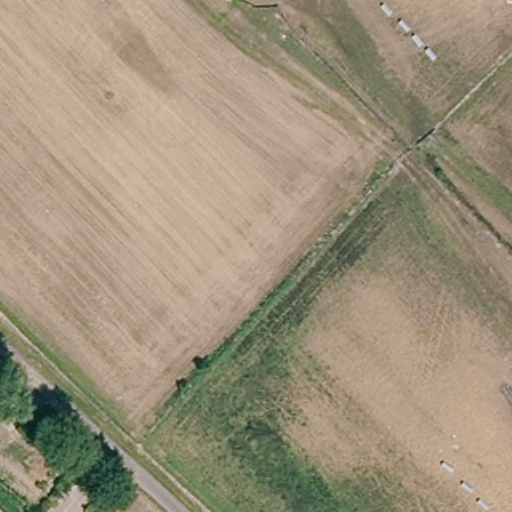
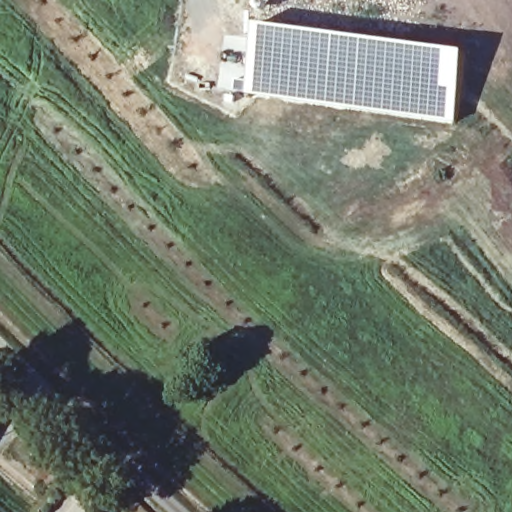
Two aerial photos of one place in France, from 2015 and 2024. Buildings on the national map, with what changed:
new [(465,52),(456,122),(247,94),(256,24),(465,52)]

